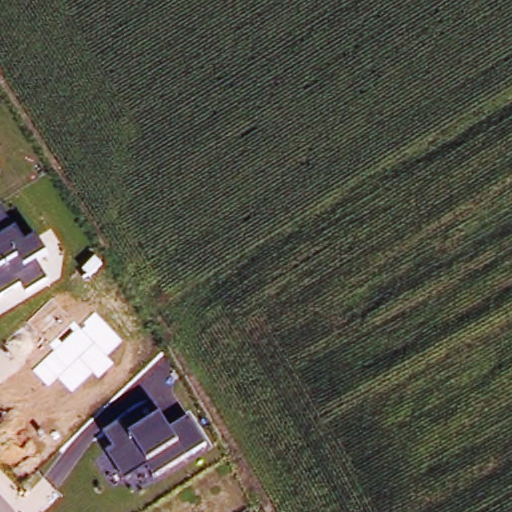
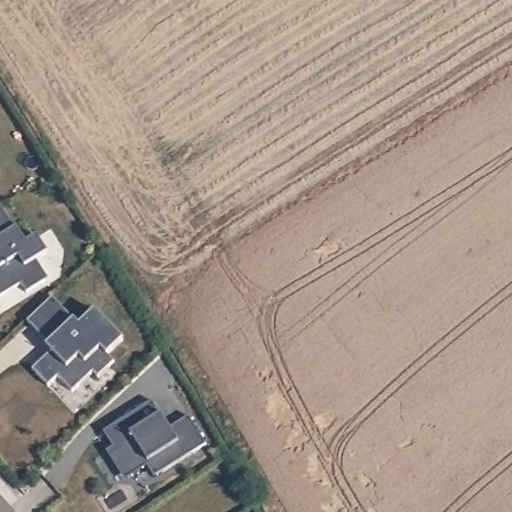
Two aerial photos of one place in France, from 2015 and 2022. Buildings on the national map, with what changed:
unchanged [(36,234),(47,252),(37,259),(49,280),(26,292),(22,285),(0,298),(0,203),(24,241),(36,234)]
new [(97,377),(92,372),(72,391),(59,376),(48,386),(33,370),(52,352),(47,347),(50,345),(28,322),(52,298),(75,320),(80,326),(96,311),(123,341),(107,355),(114,362),(97,377)]
unchanged [(150,400),(161,415),(170,431),(189,416),(205,443),(154,475),(148,465),(124,479),(106,451),(113,447),(104,428),(150,400)]

